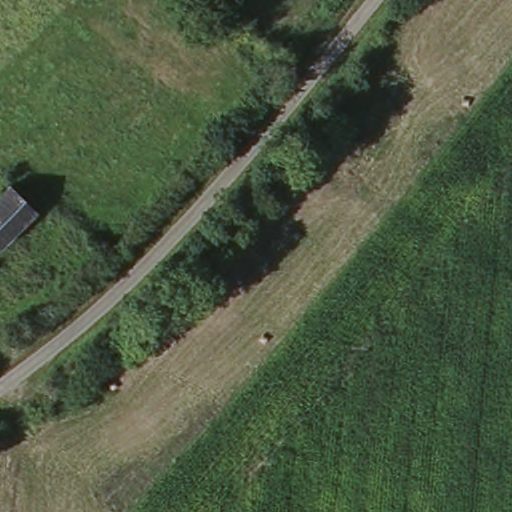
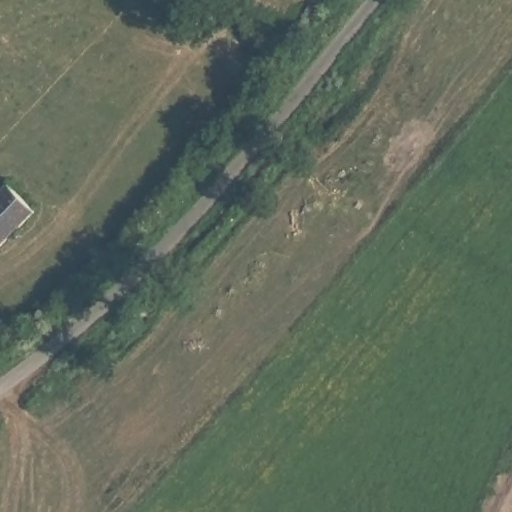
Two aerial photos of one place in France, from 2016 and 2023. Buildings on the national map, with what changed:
unchanged [(3,251),(0,248),(0,196),(5,191),(34,215),(3,251)]

